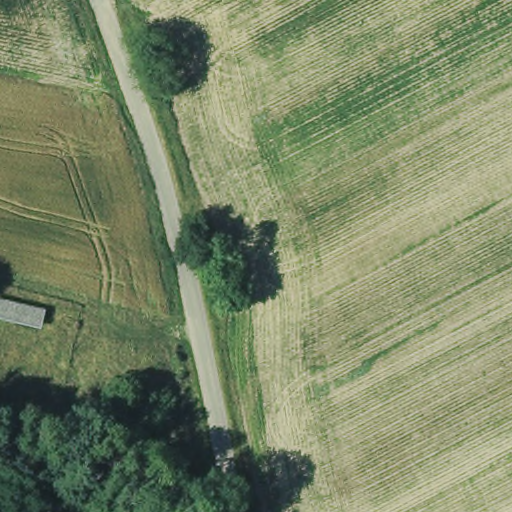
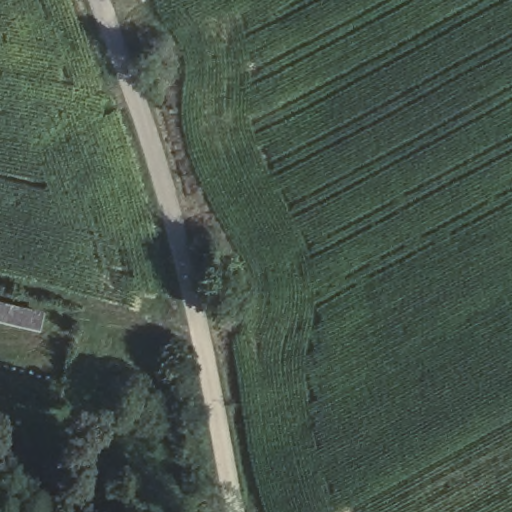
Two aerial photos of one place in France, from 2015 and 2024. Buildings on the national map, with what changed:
unchanged [(35,319),(33,331),(0,323),(0,310),(35,319)]

